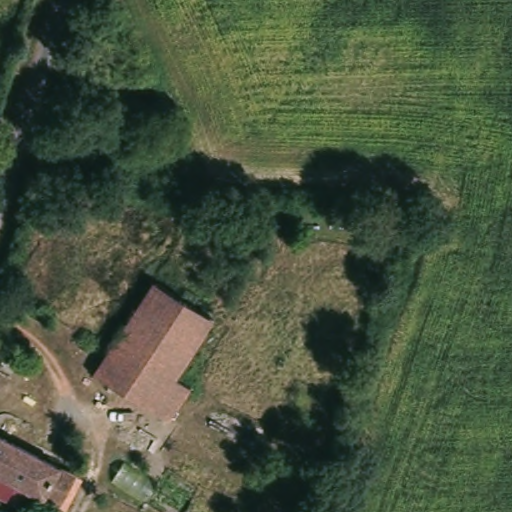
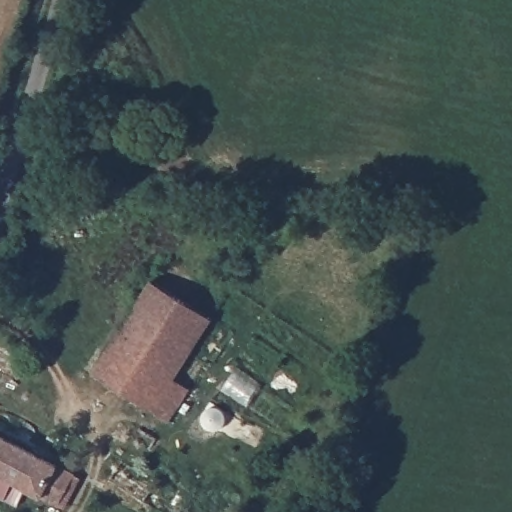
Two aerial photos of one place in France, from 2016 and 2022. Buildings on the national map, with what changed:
unchanged [(175,381),(190,389),(171,422),(96,380),(149,287),(210,320),(175,381)]
unchanged [(56,504),(27,491),(19,507),(0,498),(0,437),(71,471),(56,504)]

